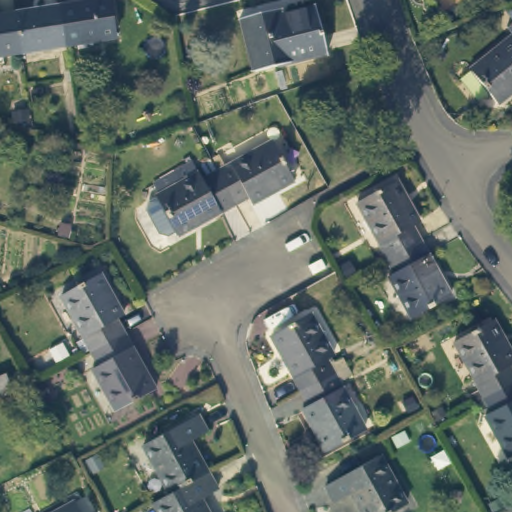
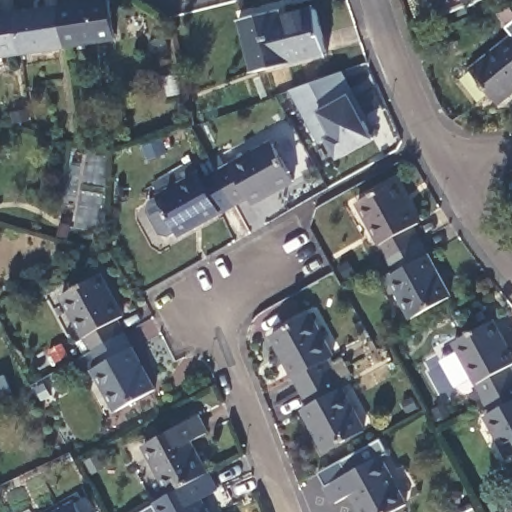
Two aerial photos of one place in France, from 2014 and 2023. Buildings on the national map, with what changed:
unchanged [(108,0),(114,40),(69,46),(61,4),(88,0),(108,0)]
unchanged [(61,4),(69,46),(24,51),(16,10),(61,4)]
unchanged [(0,55),(0,12),(16,10),(24,51),(0,55)]
unchanged [(251,74),(239,19),(265,13),(267,21),(314,11),(324,54),(251,74)]
unchanged [(492,87),(478,98),(463,76),(512,37),(512,94),(503,102),(492,87)]
new [(355,93),(351,94),(375,139),(338,160),(328,141),(319,144),(290,91),(344,71),(355,93)]
unchanged [(272,142),(293,183),(252,206),(248,200),(234,207),(216,172),(272,142)]
unchanged [(180,238),(159,197),(199,174),(202,180),(216,172),(234,207),(180,238)]
unchanged [(359,203),(395,182),(418,223),(414,226),(422,240),(389,258),(359,203)]
unchanged [(453,297),(415,319),(392,278),(398,275),(389,258),(422,240),(453,297)]
unchanged [(63,298),(100,276),(123,318),(118,321),(126,336),(93,354),(63,298)]
unchanged [(275,335),(314,312),(336,353),(327,358),(335,374),(304,390),(275,335)]
unchanged [(489,317),(512,360),(512,362),(508,365),(512,373),(512,378),(486,391),(458,336),(489,317)]
unchanged [(156,390),(115,413),(92,369),(99,365),(93,354),(126,336),(156,390)]
unchanged [(365,431),(328,451),(306,409),(312,406),(304,390),(335,374),(365,431)]
unchanged [(488,411),(494,407),(486,391),(512,378),(512,451),(509,453),(488,411)]
unchanged [(4,389),(0,391),(0,380),(4,389)]
unchanged [(145,441),(198,411),(208,431),(192,441),(207,470),(171,491),(145,441)]
unchanged [(407,503),(389,512),(366,512),(355,490),(338,500),(329,481),(382,451),(407,503)]
unchanged [(217,489),(201,497),(209,512),(159,512),(153,501),(171,491),(207,470),(217,489)]
unchanged [(78,499),(85,512),(56,512),(78,499)]

